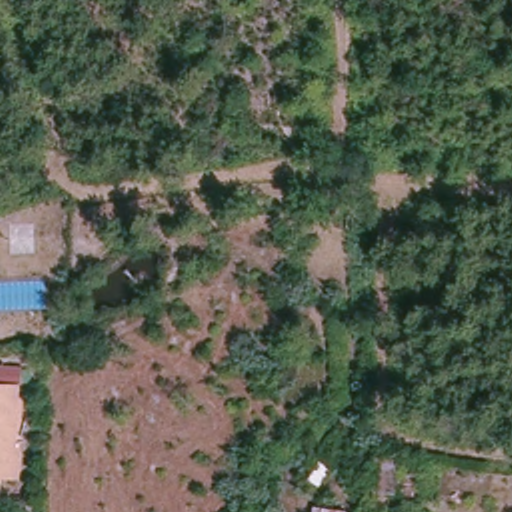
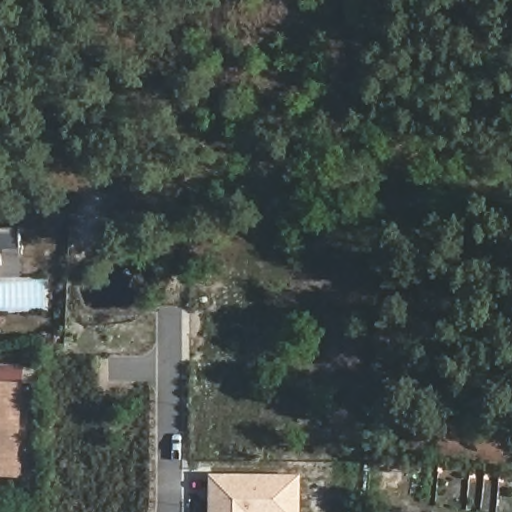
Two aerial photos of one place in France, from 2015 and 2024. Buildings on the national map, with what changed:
unchanged [(15,462),(15,475),(0,475),(0,385),(17,386),(15,462)]
new [(209,477),(298,477),(299,512),(209,512),(209,477)]
demolished [(350,512),(314,512),(315,509),(350,512)]

